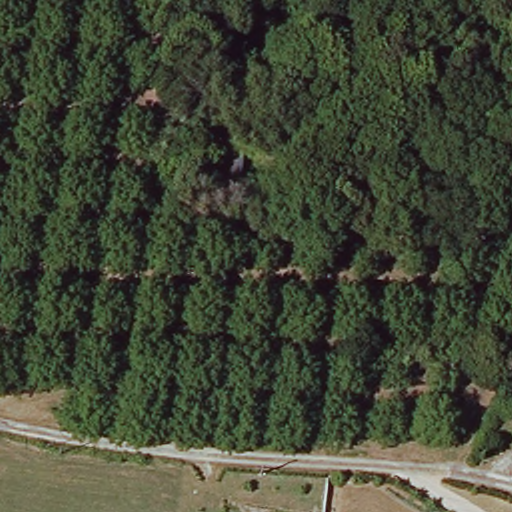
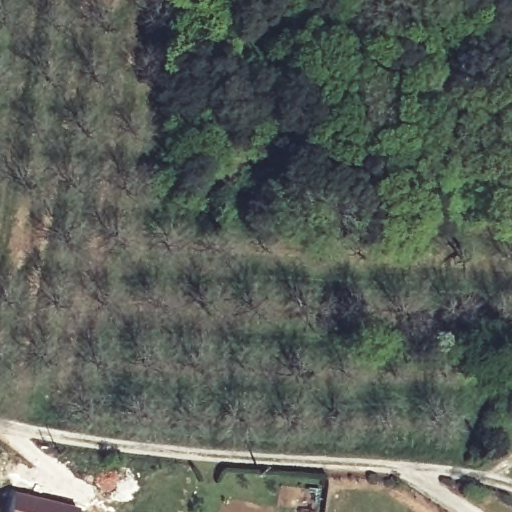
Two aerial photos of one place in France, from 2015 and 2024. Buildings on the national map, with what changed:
new [(13,490),(78,507),(77,512),(7,512),(13,490)]

